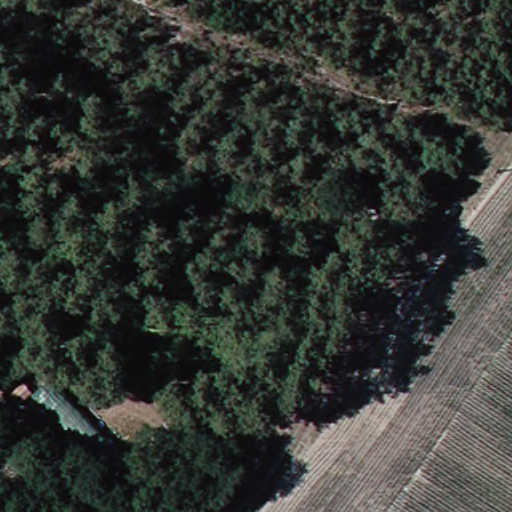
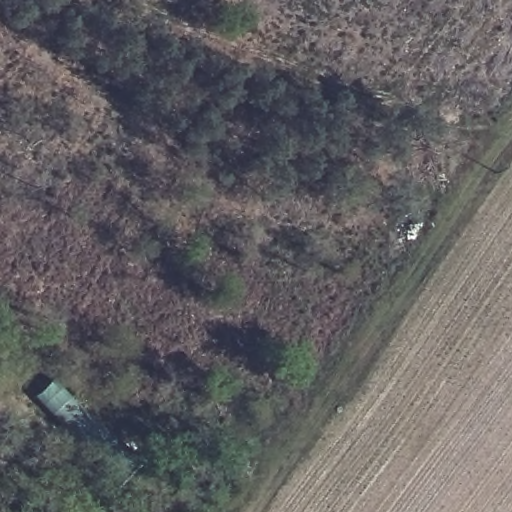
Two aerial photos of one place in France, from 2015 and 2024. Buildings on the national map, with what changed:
unchanged [(51,379),(112,445),(95,461),(33,394),(51,379)]

